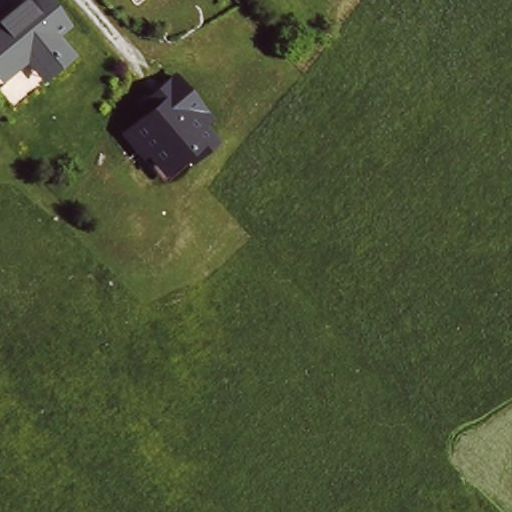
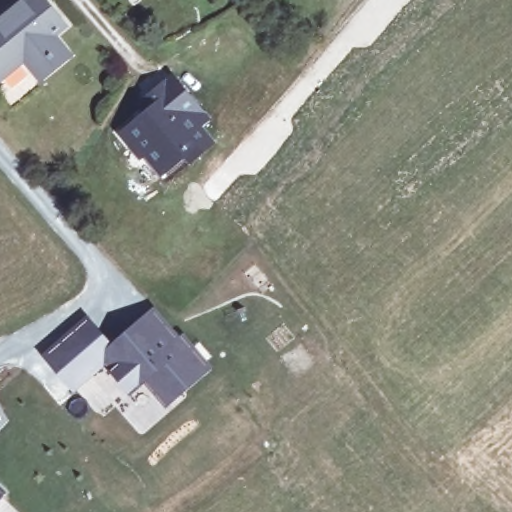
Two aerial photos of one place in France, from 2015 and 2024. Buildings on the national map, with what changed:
unchanged [(53,9),(65,24),(52,34),(63,47),(37,69),(26,54),(0,74),(0,17),(22,0),(25,0),(40,19),(53,9)]
unchanged [(172,72),(198,104),(188,112),(210,139),(195,151),(189,142),(179,151),(176,147),(160,160),(140,135),(132,141),(121,127),(153,101),(147,93),(172,72)]
new [(89,316),(112,341),(154,305),(214,367),(166,411),(142,386),(127,397),(104,370),(75,392),(42,355),(89,316)]
new [(2,497),(0,499),(0,496),(2,497)]

